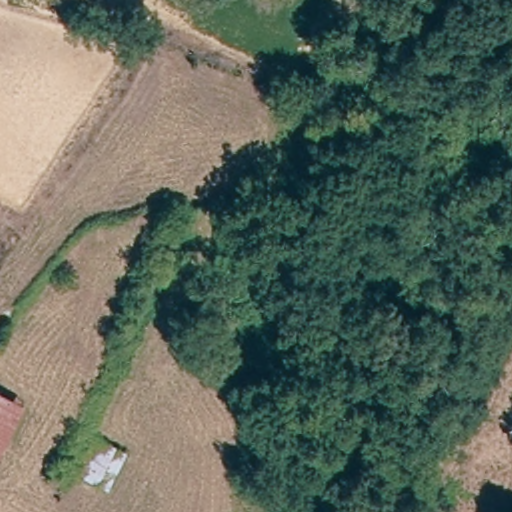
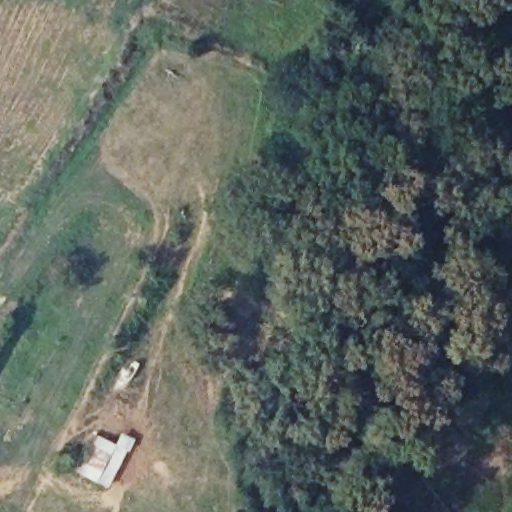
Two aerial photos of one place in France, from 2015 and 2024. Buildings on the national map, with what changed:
demolished [(5,460),(0,457),(0,389),(35,406),(5,460)]
unchanged [(117,490),(80,472),(100,433),(136,450),(117,490)]

